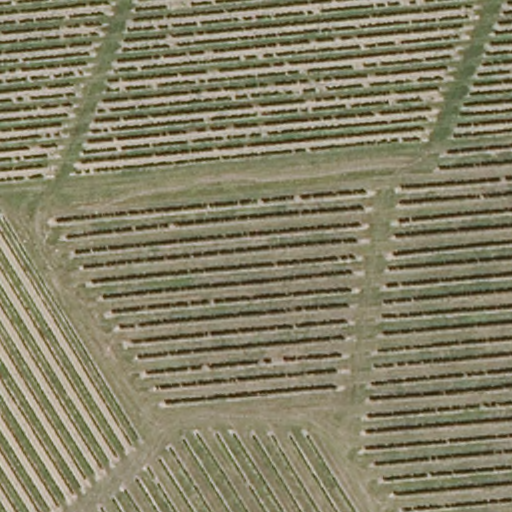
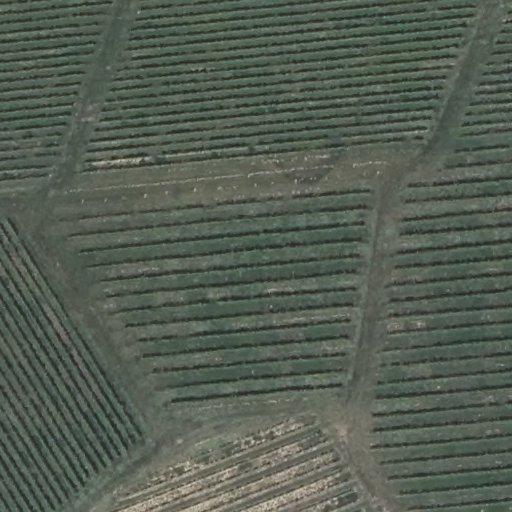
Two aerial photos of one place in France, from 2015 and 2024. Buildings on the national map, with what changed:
[]

